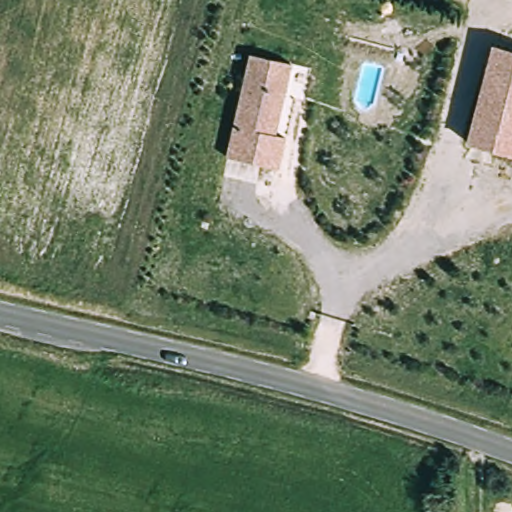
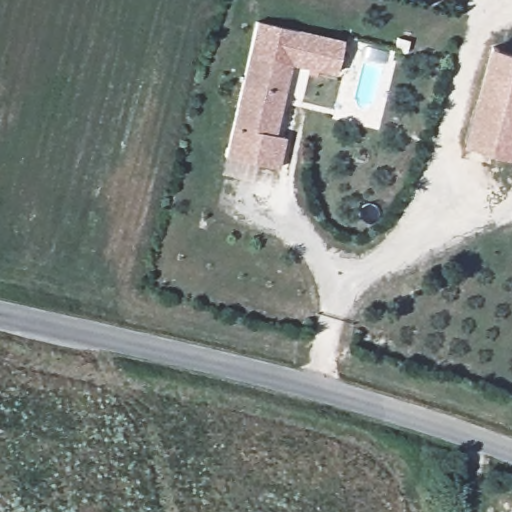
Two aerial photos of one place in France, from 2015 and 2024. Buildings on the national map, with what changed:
new [(257,17),(343,38),(335,72),(293,61),(251,50),(257,17)]
unchanged [(512,155),(475,145),(500,49),(512,52),(512,155)]
unchanged [(251,50),(293,61),(274,136),(282,139),(274,170),(223,156),(251,50)]

